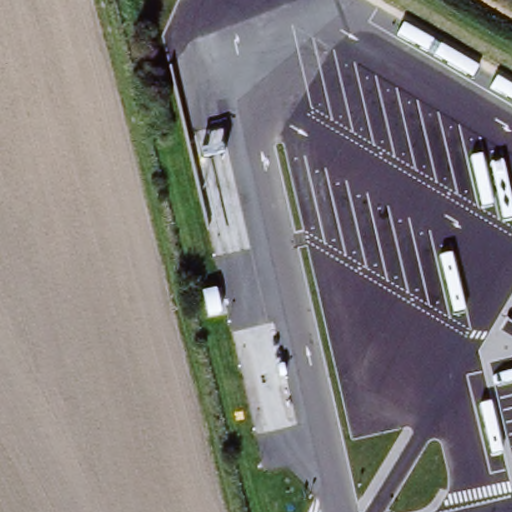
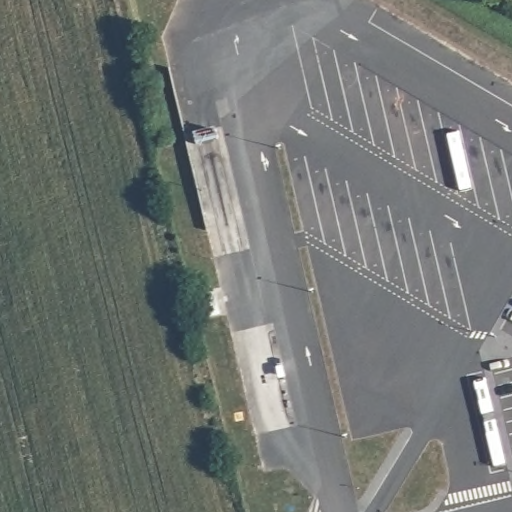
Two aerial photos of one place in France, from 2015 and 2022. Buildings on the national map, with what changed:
unchanged [(166,215),(171,214),(173,214),(179,237),(177,237),(173,239),(166,215)]

